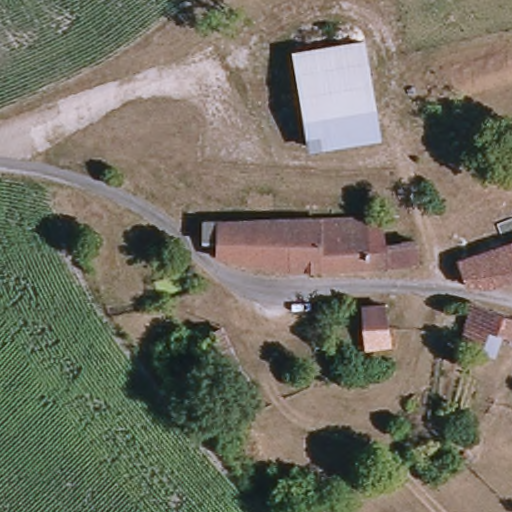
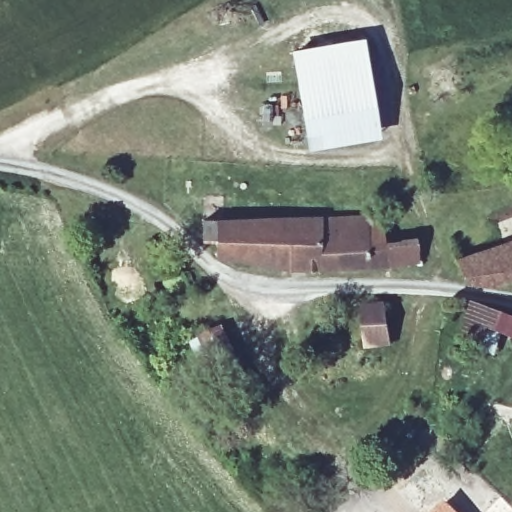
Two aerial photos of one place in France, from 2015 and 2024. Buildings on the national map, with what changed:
unchanged [(294,54),(363,42),(369,75),(299,87),(294,54)]
unchanged [(311,147),(299,87),(369,75),(379,129),(380,134),(359,137),(311,147)]
unchanged [(421,249),(372,254),(369,224),(417,220),(421,249)]
unchanged [(372,254),(421,249),(422,267),(355,272),(288,276),(246,271),(221,264),(223,250),(206,249),(206,231),(270,230),(369,224),(372,254)]
unchanged [(469,289),(461,265),(512,246),(512,285),(484,292),(469,289)]
unchanged [(323,295),(325,310),(313,307),(312,294),(323,295)]
unchanged [(483,347),(462,341),(469,304),(512,314),(512,342),(489,333),(483,347)]
unchanged [(389,311),(395,352),(372,352),(367,308),(389,311)]
new [(458,512),(433,512),(445,500),(458,512)]

